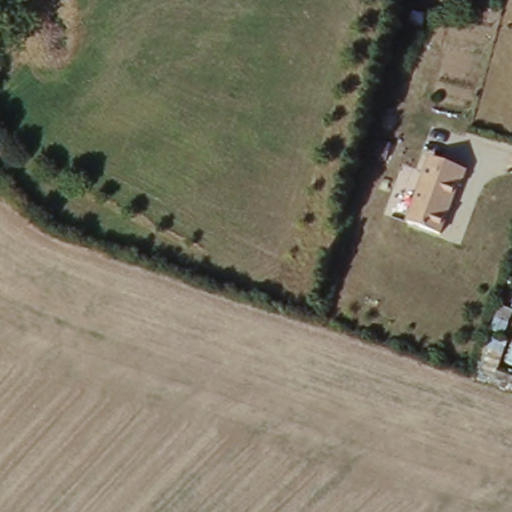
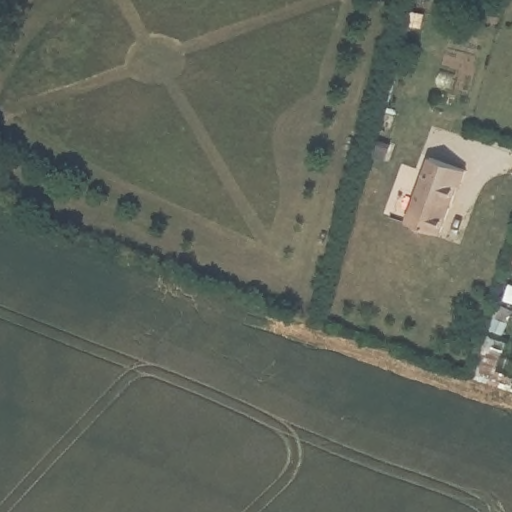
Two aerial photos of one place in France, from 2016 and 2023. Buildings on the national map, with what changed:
unchanged [(466,172),(460,188),(458,187),(441,236),(408,224),(431,159),(466,172)]

